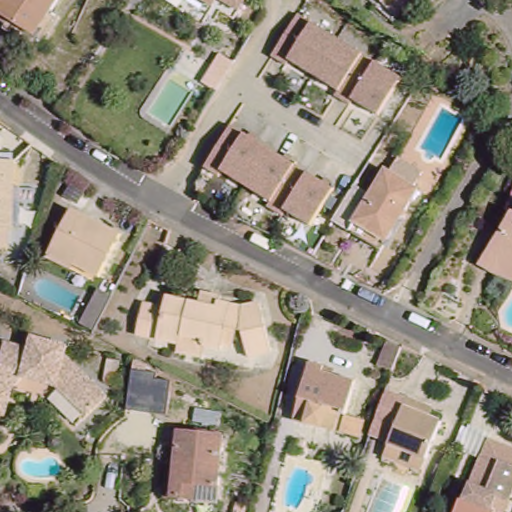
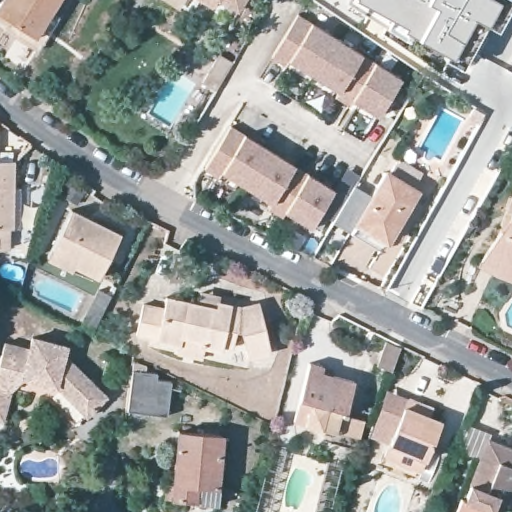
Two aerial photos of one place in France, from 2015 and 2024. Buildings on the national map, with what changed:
unchanged [(0,4),(3,0),(61,0),(58,6),(66,12),(43,47),(8,24),(14,15),(0,5),(0,4)]
unchanged [(238,3),(233,0),(241,0),(238,3)]
new [(498,28),(487,23),(462,63),(451,54),(420,37),(405,30),(408,25),(366,0),(512,0),(512,1),(498,28)]
demolished [(380,0),(410,0),(396,14),(383,2),(380,0)]
unchanged [(403,69),(381,107),(356,92),(353,98),(338,89),(341,84),(291,56),(288,61),(273,53),(298,9),(403,69)]
new [(220,53),(234,61),(216,89),(203,80),(220,53)]
unchanged [(482,107),(475,120),(466,115),(473,102),(482,107)]
unchanged [(315,212),(289,197),(286,203),(271,194),(274,189),(224,161),(221,166),(206,158),(231,114),(336,174),(315,212)]
unchanged [(8,228),(5,228),(4,248),(0,248),(0,160),(8,160),(8,187),(16,187),(15,228),(8,228)]
unchanged [(350,230),(334,221),(354,185),(373,195),(387,170),(418,189),(387,241),(381,249),(350,230)]
unchanged [(507,209),(512,196),(512,211),(507,209)]
unchanged [(48,259),(53,250),(72,211),(121,235),(100,279),(75,266),(72,271),(48,259)]
unchanged [(509,276),(491,267),(482,261),(498,236),(512,213),(512,277),(509,276)]
unchanged [(180,343),(136,336),(143,304),(163,308),(166,297),(198,303),(201,291),(218,295),(216,301),(239,306),(258,302),(270,352),(248,358),(243,341),(236,339),(235,348),(222,346),(221,351),(205,348),(202,359),(178,354),(180,345),(180,343)]
unchanged [(30,372),(18,368),(7,380),(0,400),(0,343),(3,332),(28,341),(31,329),(65,341),(62,349),(105,389),(85,412),(51,380),(40,376),(38,381),(28,378),(30,372)]
unchanged [(376,367),(379,362),(385,343),(400,348),(393,367),(392,372),(376,367)]
unchanged [(336,432),(294,421),(300,398),(297,397),(306,362),(309,363),(324,366),(323,371),(355,381),(347,413),(342,434),(336,432)]
unchanged [(167,414),(128,411),(132,367),(158,369),(156,379),(171,380),(167,414)]
unchanged [(439,407),(436,415),(447,420),(426,471),(388,457),(413,397),(439,407)]
unchanged [(196,496),(171,494),(177,425),(224,429),(219,483),(218,497),(196,496)]
unchanged [(465,500),(490,439),(512,448),(512,498),(507,512),(456,512),(461,499),(465,500)]
unchanged [(44,497),(55,497),(55,505),(44,505),(44,497)]

